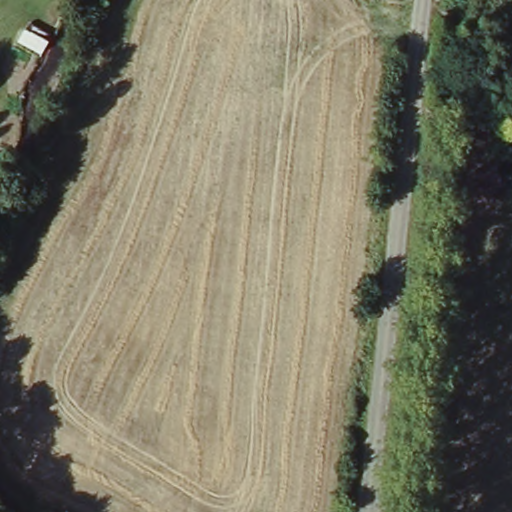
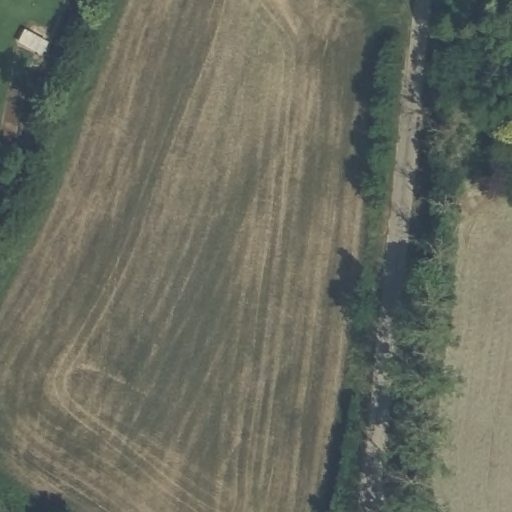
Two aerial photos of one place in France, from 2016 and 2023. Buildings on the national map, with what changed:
unchanged [(25,33),(54,44),(41,68),(16,57),(25,33)]
unchanged [(441,74),(459,76),(457,101),(437,98),(441,74)]

